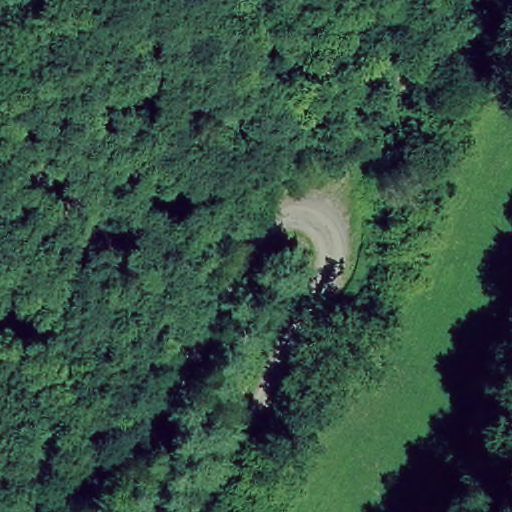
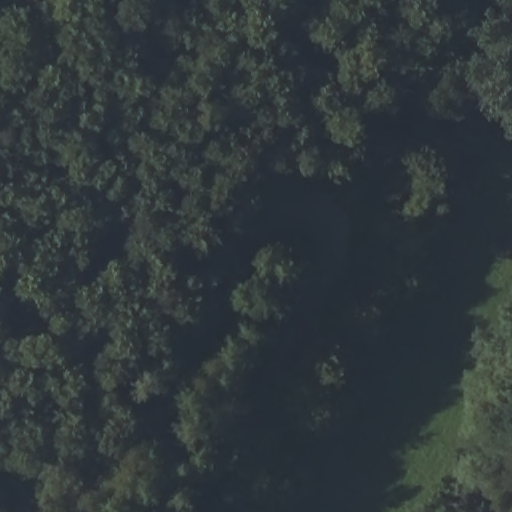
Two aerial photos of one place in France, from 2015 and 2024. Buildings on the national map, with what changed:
[]

